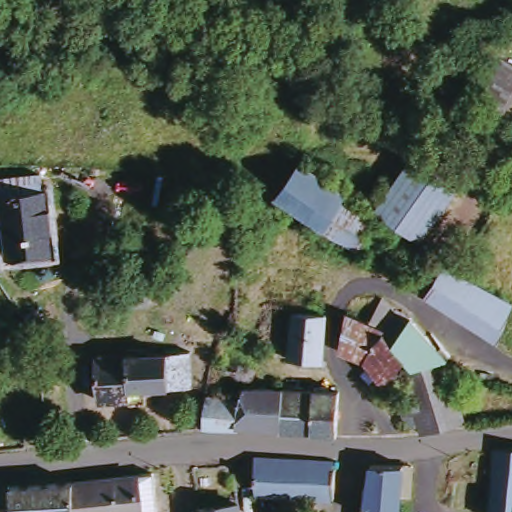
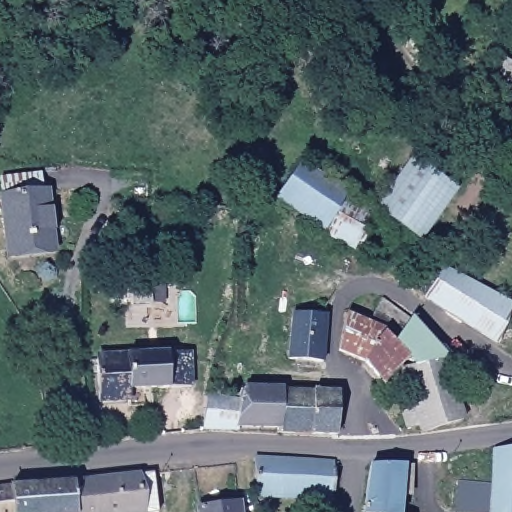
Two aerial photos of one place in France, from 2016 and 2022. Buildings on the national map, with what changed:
unchanged [(506,113),(480,98),(504,58),(512,63),(512,102),(506,113)]
unchanged [(308,161),(350,192),(383,218),(365,253),(282,201),(308,161)]
unchanged [(463,196),(427,245),(421,240),(384,213),(419,164),(447,184),(463,196)]
unchanged [(13,255),(9,177),(49,175),(50,193),(54,193),(58,253),(13,255)]
unchanged [(512,306),(512,309),(499,344),(429,302),(450,270),(459,276),(512,306)]
unchanged [(151,279),(153,301),(134,302),(133,299),(114,299),(114,281),(151,279)]
unchanged [(373,362),(348,351),(354,315),(376,325),(389,301),(416,322),(453,359),(425,366),(416,361),(405,367),(392,387),(373,362)]
unchanged [(332,317),(331,365),(297,364),(297,348),(298,316),(332,317)]
unchanged [(141,393),(141,410),(119,412),(119,405),(89,407),(86,362),(168,356),(176,355),(178,388),(171,389),(141,393)]
unchanged [(426,427),(413,430),(409,412),(419,410),(409,370),(425,366),(453,359),(458,376),(471,420),(428,434),(426,427)]
unchanged [(278,427),(243,428),(249,402),(251,399),(253,391),(343,394),(338,437),(277,434),(278,427)]
unchanged [(211,401),(211,398),(249,402),(243,428),(241,434),(203,433),(211,401)]
unchanged [(512,449),(512,481),(497,480),(498,449),(512,449)]
unchanged [(400,512),(376,512),(366,511),(374,461),(404,462),(400,512)]
unchanged [(161,465),(163,500),(150,502),(96,512),(71,512),(70,479),(147,467),(161,465)]
unchanged [(339,505),(264,503),(261,473),(259,465),(336,465),(336,474),(339,505)]
unchanged [(0,487),(70,479),(71,512),(0,512),(0,487)]
unchanged [(512,481),(512,512),(495,512),(497,480),(512,481)]
unchanged [(239,512),(199,512),(198,508),(237,502),(239,512)]
unchanged [(366,511),(376,512),(366,512),(366,511)]

